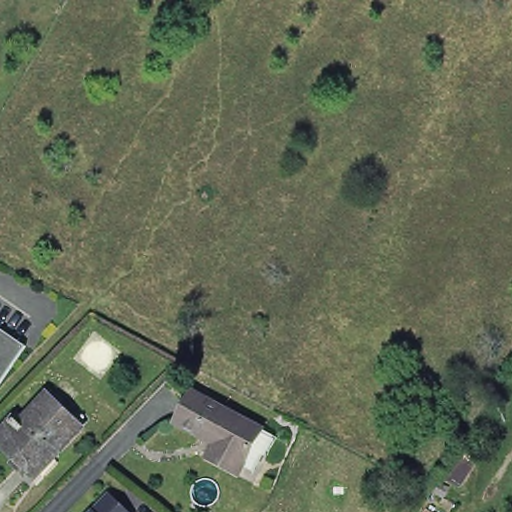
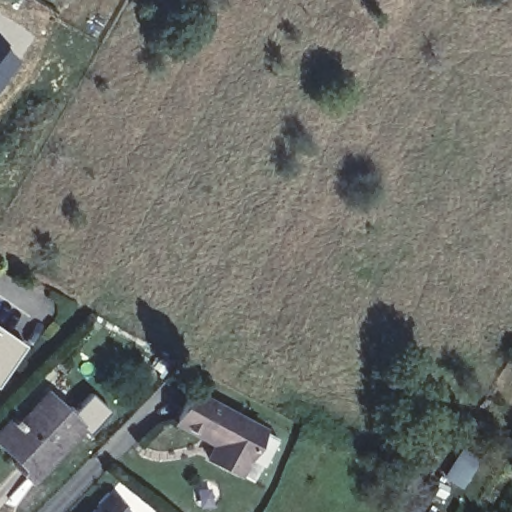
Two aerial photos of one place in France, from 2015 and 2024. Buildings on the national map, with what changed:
new [(0,85),(0,45),(19,60),(0,85)]
unchanged [(0,375),(0,320),(25,336),(0,375)]
unchanged [(237,477),(205,461),(212,448),(175,428),(192,395),(195,390),(265,427),(261,433),(237,477)]
unchanged [(44,463),(31,477),(14,462),(17,457),(0,442),(0,427),(9,416),(16,423),(46,391),(81,425),(52,455),(57,460),(49,468),(44,463)]
unchanged [(107,494),(125,512),(90,512),(107,494)]

